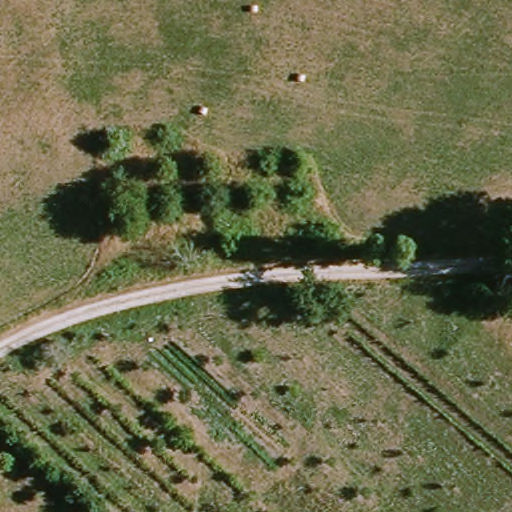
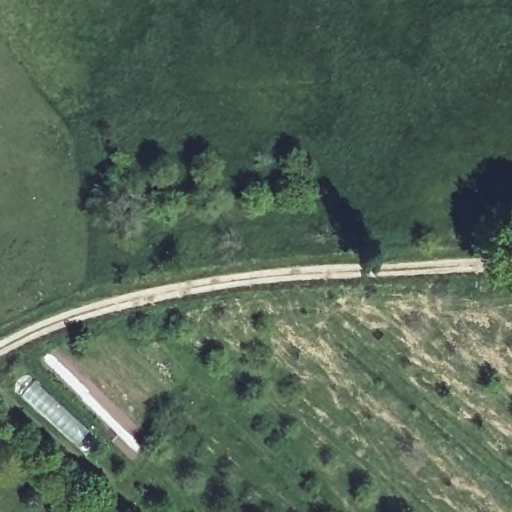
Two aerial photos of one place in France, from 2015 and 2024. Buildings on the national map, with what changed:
[]

